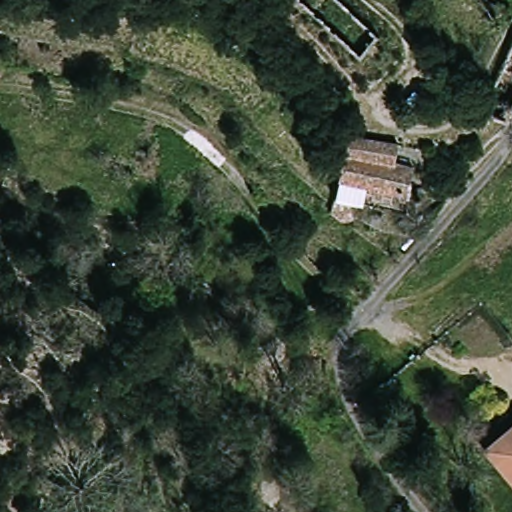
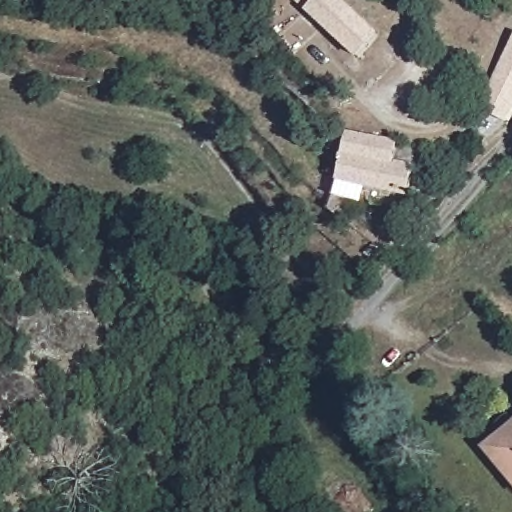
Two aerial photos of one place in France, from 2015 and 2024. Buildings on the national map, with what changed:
new [(343,0),(380,35),(358,61),(307,11),(294,0),(343,0)]
demolished [(488,100),(512,56),(512,114),(488,100)]
unchanged [(400,159),(418,162),(412,192),(373,184),(362,225),(334,209),(351,130),(402,138),(400,159)]
unchanged [(490,444),(512,425),(512,469),(490,444)]

